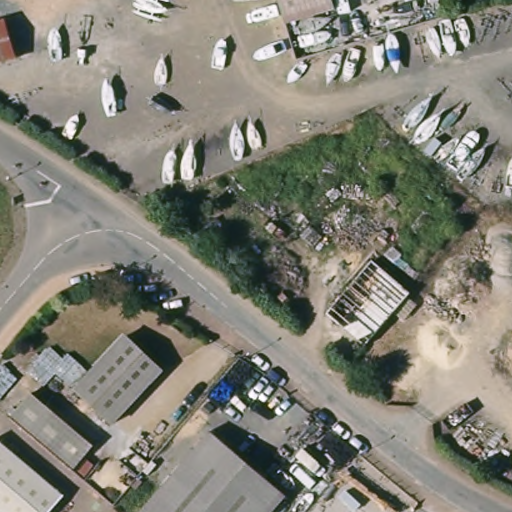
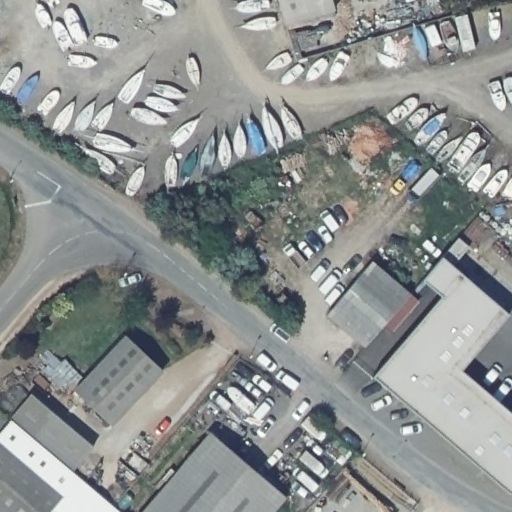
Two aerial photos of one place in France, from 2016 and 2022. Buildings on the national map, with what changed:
unchanged [(335,9),(288,22),(281,0),(333,0),(335,9)]
unchanged [(0,68),(0,23),(7,21),(20,63),(0,68)]
new [(441,295),(422,280),(443,257),(458,237),(468,245),(452,265),(508,312),(460,368),(512,412),(512,490),(508,490),(372,376),(441,295)]
new [(372,259),(410,291),(363,346),(327,313),(372,259)]
unchanged [(165,372),(115,425),(79,389),(129,337),(165,372)]
unchanged [(95,442),(75,467),(14,415),(36,390),(95,442)]
unchanged [(290,493),(274,512),(141,512),(199,445),(213,427),(234,445),(290,493)]
unchanged [(55,512),(0,512),(0,441),(66,498),(55,512)]

